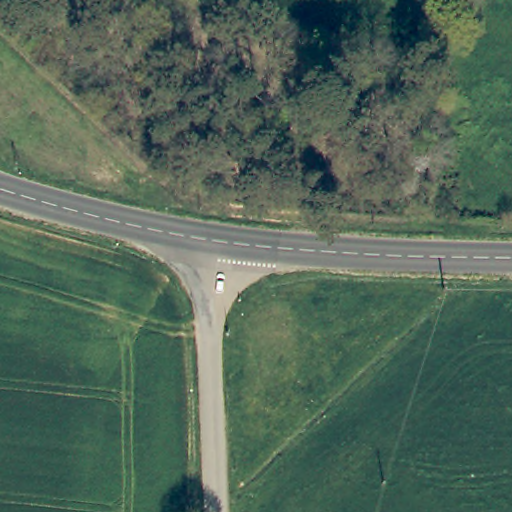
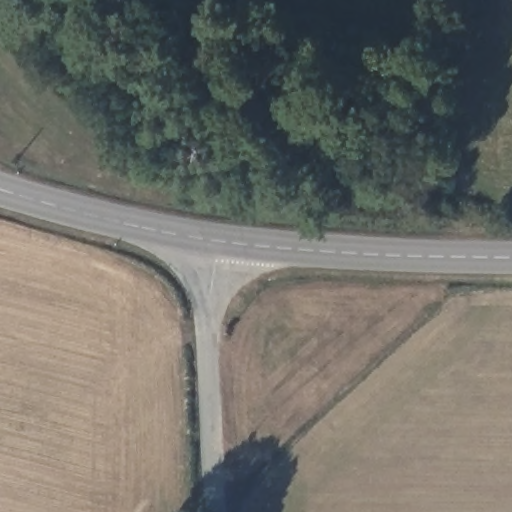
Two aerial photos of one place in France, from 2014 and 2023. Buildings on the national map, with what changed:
unchanged [(436,135),(435,107),(452,106),(453,135),(436,135)]

